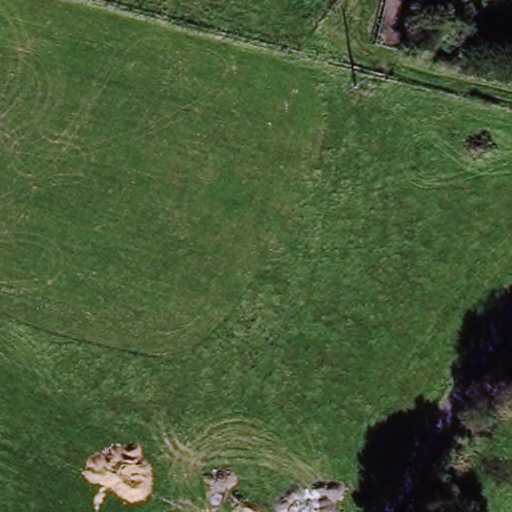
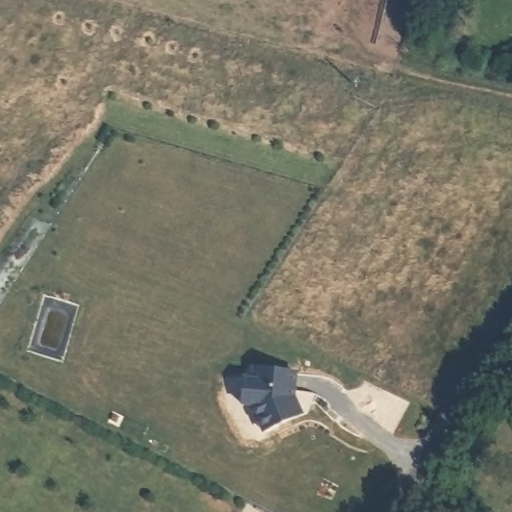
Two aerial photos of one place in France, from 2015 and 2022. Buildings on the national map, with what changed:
unchanged [(451,64),(434,60),(440,32),(457,36),(451,64)]
new [(240,381),(249,382),(250,371),(291,375),(289,397),(297,415),(259,432),(247,407),(238,406),(240,381)]

